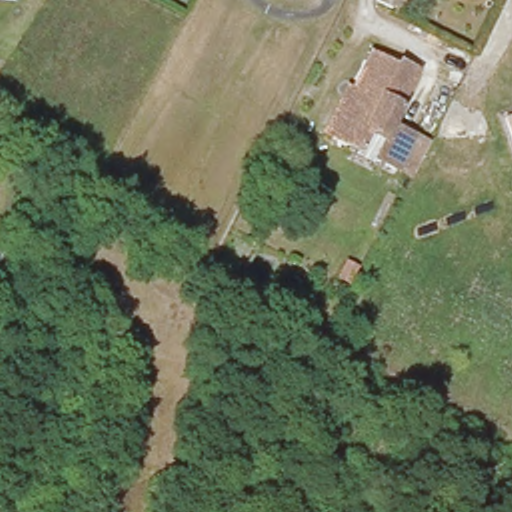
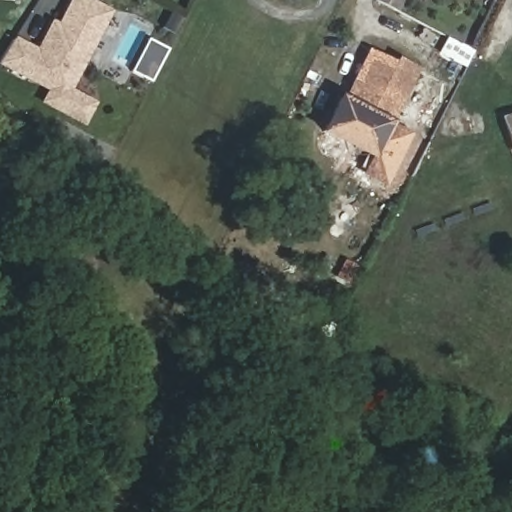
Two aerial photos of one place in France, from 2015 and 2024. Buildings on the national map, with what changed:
new [(15,36),(36,48),(51,19),(58,23),(70,0),(92,0),(113,11),(72,89),(97,102),(84,127),(40,103),(46,90),(0,66),(0,65),(15,36)]
unchanged [(415,162),(409,175),(391,166),(366,154),(374,139),(364,133),(355,148),(332,137),(320,132),(340,92),(346,95),(366,55),(381,62),(384,57),(408,69),(381,123),(406,135),(425,143),(415,162)]

